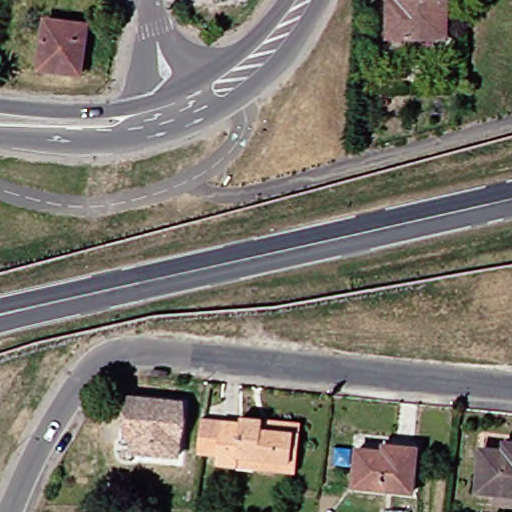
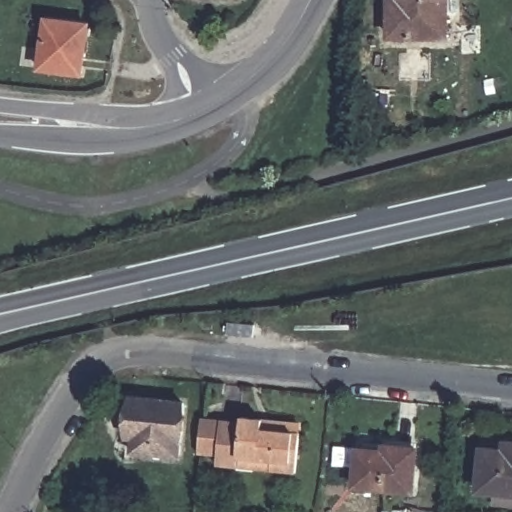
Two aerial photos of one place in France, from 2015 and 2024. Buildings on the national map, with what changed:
unchanged [(448,38),(390,36),(390,0),(449,0),(448,38)]
unchanged [(80,72),(41,67),(48,20),(87,26),(80,72)]
unchanged [(183,402),(179,454),(135,451),(136,423),(129,423),(131,398),(183,402)]
unchanged [(223,464),(223,457),(204,455),(209,416),(248,421),(249,415),(271,418),(308,422),(307,431),(303,473),(265,469),(244,467),(223,464)]
unchanged [(501,492),(484,491),(488,449),(511,451),(512,442),(512,507),(500,506),(501,492)]
unchanged [(419,448),(415,492),(356,486),(360,449),(385,451),(386,444),(419,448)]

